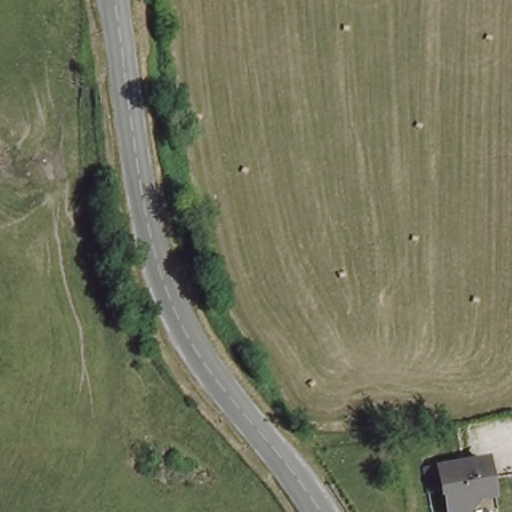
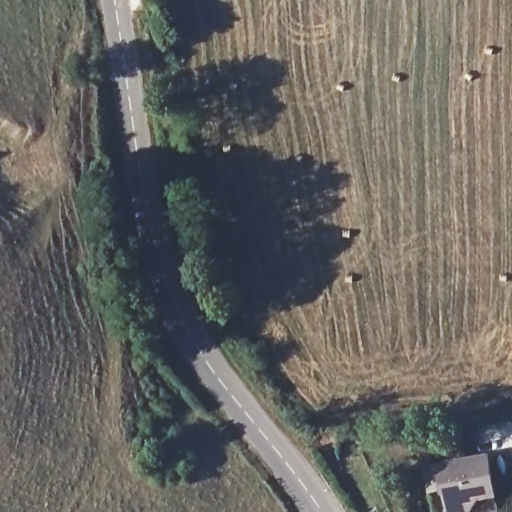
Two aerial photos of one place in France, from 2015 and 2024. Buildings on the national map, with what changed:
unchanged [(482,459),(491,496),(475,500),(468,512),(447,512),(442,491),(440,492),(435,469),(482,459)]

